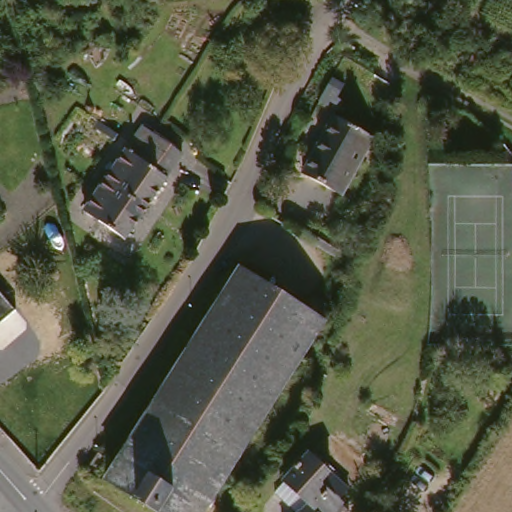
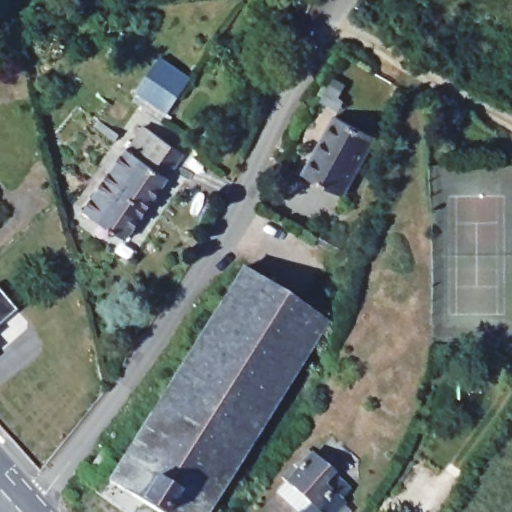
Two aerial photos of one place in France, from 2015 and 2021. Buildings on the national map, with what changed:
new [(190,79),(167,113),(136,91),(159,58),(190,79)]
unchanged [(342,116),(381,133),(351,195),(312,178),(342,116)]
unchanged [(149,121),(160,129),(187,149),(151,203),(113,175),(149,121)]
unchanged [(130,235),(94,207),(113,175),(151,203),(130,235)]
unchanged [(134,456),(212,320),(244,266),(317,304),(323,295),(333,300),(328,310),(333,314),(220,512),(173,512),(119,482),(134,456)]
unchanged [(0,349),(0,336),(6,343),(0,349)]
unchanged [(310,452),(336,476),(351,489),(342,498),(346,502),(337,512),(321,512),(305,498),(286,480),(310,452)]
unchanged [(321,512),(289,512),(305,498),(321,512)]

